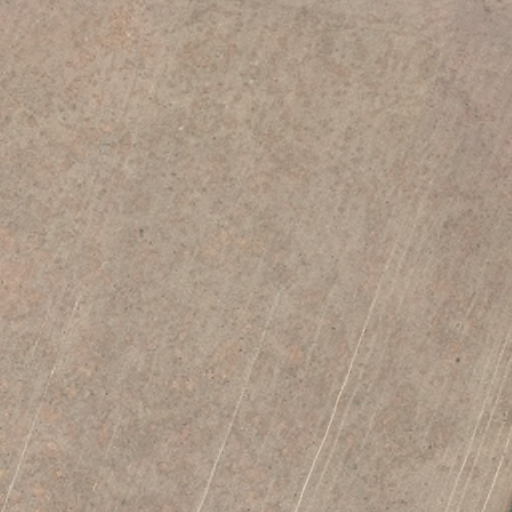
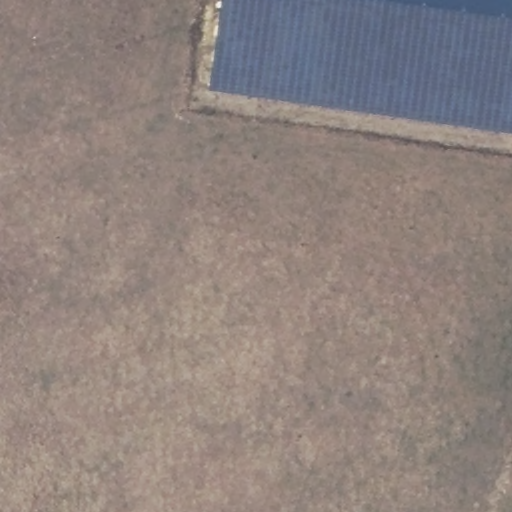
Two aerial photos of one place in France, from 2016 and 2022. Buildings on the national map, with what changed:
new [(211,89),(223,0),(512,0),(512,132),(211,89)]

